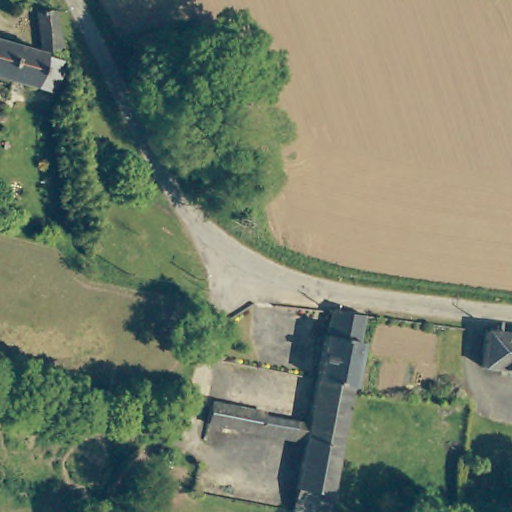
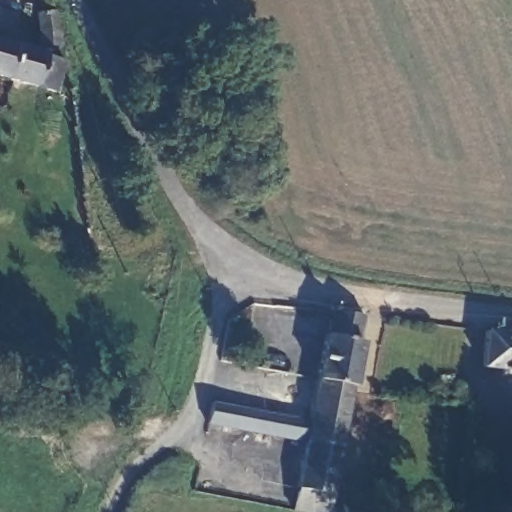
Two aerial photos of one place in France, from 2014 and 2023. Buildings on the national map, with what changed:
unchanged [(49,41),(41,5),(61,2),(70,37),(49,41)]
unchanged [(44,47),(65,55),(59,86),(0,72),(0,31),(43,41),(44,47)]
unchanged [(327,338),(329,338),(332,313),(355,316),(366,316),(362,341),(355,396),(348,448),(342,448),(311,445),(314,423),(327,338)]
unchanged [(471,367),(475,329),(512,333),(512,374),(471,367)]
unchanged [(234,354),(230,376),(219,374),(222,352),(234,354)]
unchanged [(270,439),(216,427),(220,402),(274,414),(270,439)]
unchanged [(270,439),(274,414),(314,423),(311,445),(310,448),(270,439)]
unchanged [(304,487),(310,448),(311,445),(342,448),(348,448),(341,492),(339,510),(301,506),(304,487)]

